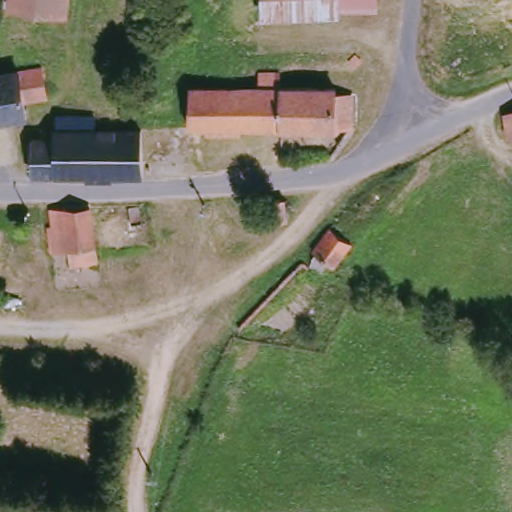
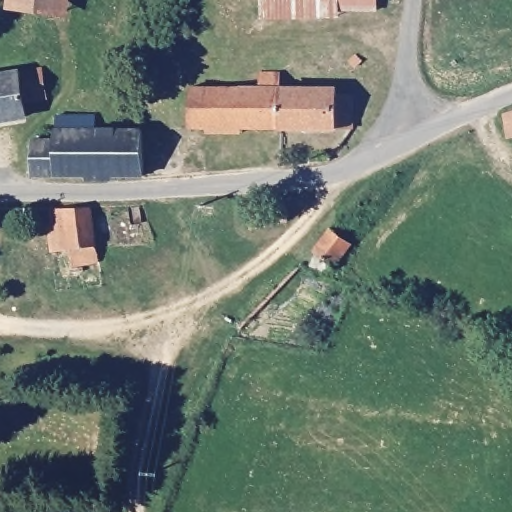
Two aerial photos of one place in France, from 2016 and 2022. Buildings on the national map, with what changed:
unchanged [(65,11),(9,6),(9,0),(66,0),(65,11)]
unchanged [(336,21),(263,23),(262,0),(335,0),(336,21)]
unchanged [(348,14),(347,0),(379,0),(380,14),(366,14),(348,14)]
unchanged [(49,97),(26,102),(27,115),(0,119),(0,76),(45,69),(49,97)]
unchanged [(282,73),(283,87),(339,88),(340,96),(354,96),(355,105),(353,130),(284,128),(192,126),(192,87),(261,87),(262,72),(282,73)]
unchanged [(100,113),(101,135),(147,135),(146,177),(35,180),(37,136),(56,136),(57,125),(60,125),(61,112),(100,113)]
unchanged [(512,114),(512,130),(510,115),(512,114)]
unchanged [(99,251),(72,253),(54,254),(51,226),(55,225),(53,209),(94,209),(99,251)]
unchanged [(349,244),(332,267),(329,266),(327,268),(323,270),(319,271),(317,272),(315,271),(313,266),(313,262),(307,257),(328,231),(349,244)]
unchanged [(39,265),(24,286),(0,267),(0,253),(9,242),(39,265)]

